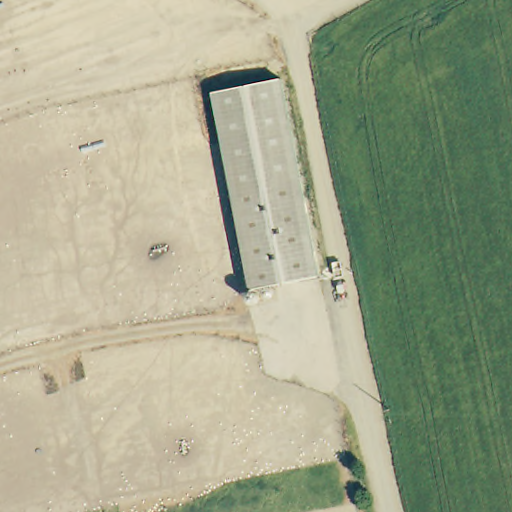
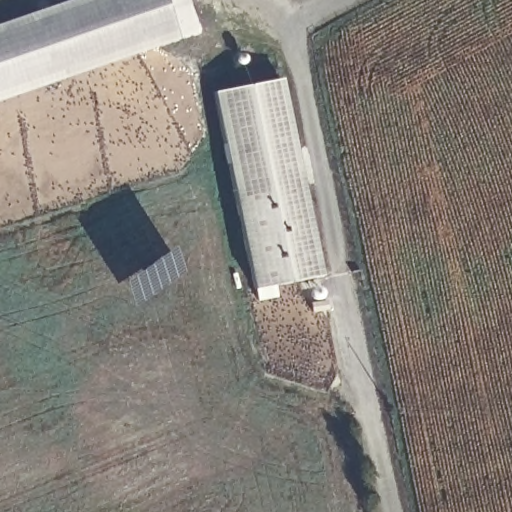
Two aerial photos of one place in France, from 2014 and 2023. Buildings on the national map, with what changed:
new [(66,0),(163,0),(176,40),(0,103),(0,23),(66,0)]
unchanged [(245,249),(215,88),(285,74),(295,129),(321,274),(251,285),(245,249)]

